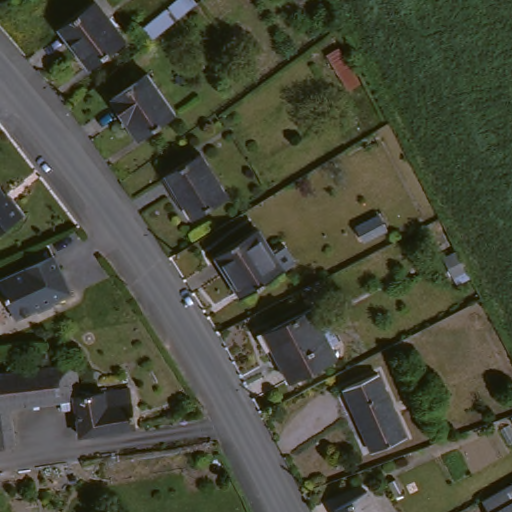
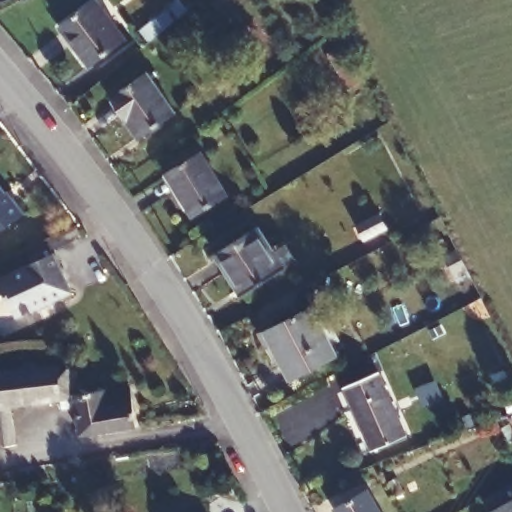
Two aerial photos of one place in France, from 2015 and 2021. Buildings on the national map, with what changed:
unchanged [(101,0),(129,40),(100,60),(71,20),(101,0)]
unchanged [(177,0),(192,0),(197,6),(149,45),(138,30),(177,0)]
unchanged [(152,77),(177,119),(146,137),(121,96),(152,77)]
unchanged [(206,149),(231,188),(196,211),(171,172),(206,149)]
unchanged [(31,217),(0,237),(0,181),(3,180),(31,217)]
unchanged [(381,216),(388,229),(366,240),(359,227),(381,216)]
unchanged [(278,251),(294,244),(304,262),(288,270),(244,292),(223,250),(266,229),(278,251)]
unchanged [(483,300),(470,306),(436,239),(449,232),(483,300)]
unchanged [(59,253),(78,293),(21,316),(4,272),(59,253)]
unchanged [(313,306),(338,350),(291,376),(266,330),(313,306)]
unchanged [(13,443),(0,445),(0,375),(29,371),(79,364),(84,390),(86,403),(27,410),(28,425),(29,441),(13,443)]
unchanged [(379,372),(408,435),(376,450),(346,388),(379,372)]
unchanged [(90,427),(86,403),(84,390),(123,385),(133,384),(141,422),(90,427)]
unchanged [(495,512),(487,498),(512,484),(512,512),(495,512)]
unchanged [(381,512),(343,512),(339,505),(369,491),(381,512)]

